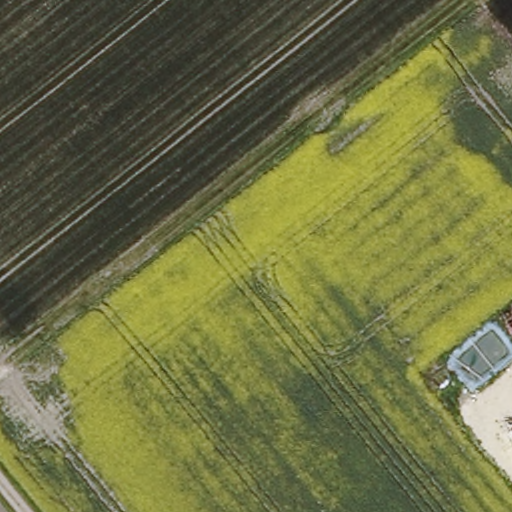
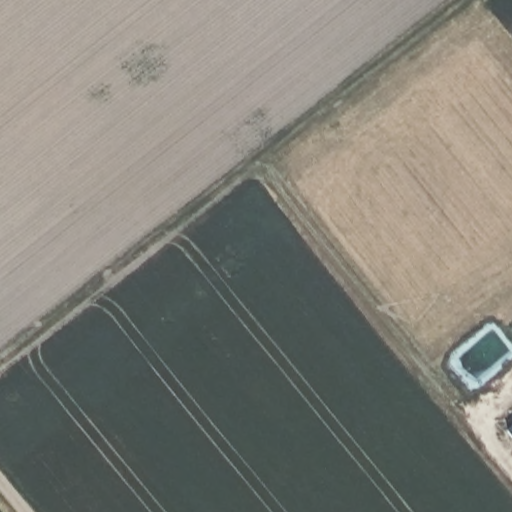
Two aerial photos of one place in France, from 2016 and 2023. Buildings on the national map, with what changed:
unchanged [(512,426),(512,434),(508,429),(512,426)]

